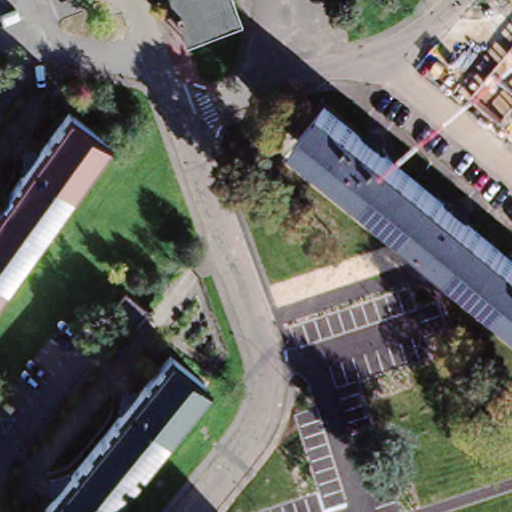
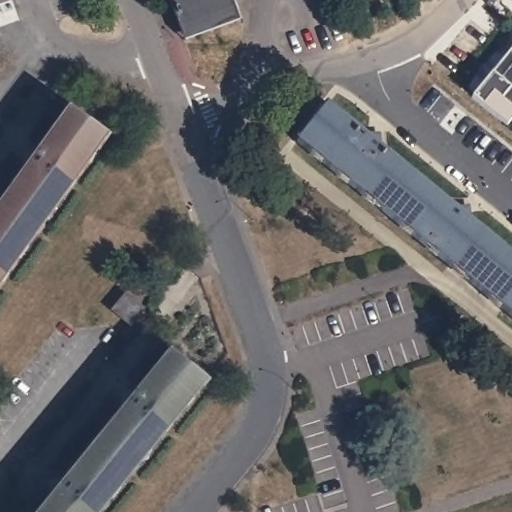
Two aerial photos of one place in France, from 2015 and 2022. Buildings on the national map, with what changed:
unchanged [(186,31),(176,7),(173,9),(169,0),(230,0),(234,13),(186,31)]
new [(512,46),(512,108),(511,110),(512,111),(512,117),(505,125),(470,97),(512,46)]
unchanged [(512,260),(512,313),(299,139),(325,106),(512,260)]
unchanged [(0,278),(0,207),(68,114),(102,138),(0,278)]
unchanged [(141,310),(129,325),(113,312),(124,298),(141,310)]
unchanged [(199,382),(95,512),(42,512),(166,356),(199,382)]

